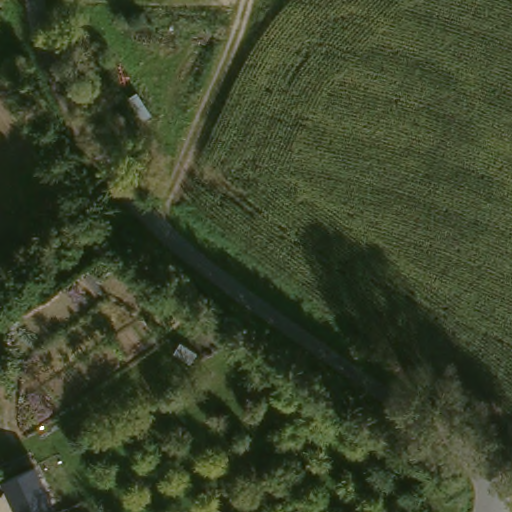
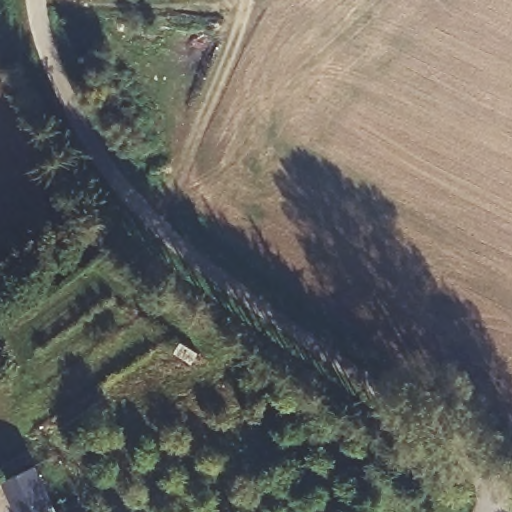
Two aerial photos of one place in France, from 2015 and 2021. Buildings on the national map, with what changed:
unchanged [(0,362),(0,347),(4,360),(0,362)]
unchanged [(36,465),(58,512),(25,512),(9,479),(36,465)]

